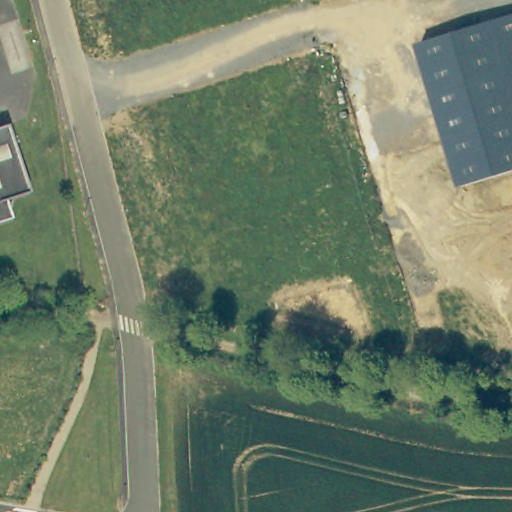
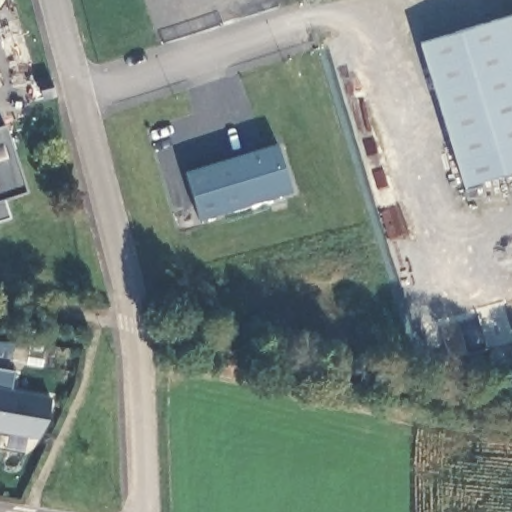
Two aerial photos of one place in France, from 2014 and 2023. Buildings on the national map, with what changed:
unchanged [(512,172),(465,187),(422,44),(512,15),(512,172)]
unchanged [(24,185),(0,194),(8,211),(0,214),(0,123),(24,185)]
new [(185,171),(277,142),(290,192),(199,219),(185,171)]
new [(0,389),(0,369),(13,371),(9,390),(0,389)]
new [(49,417),(40,438),(0,431),(0,389),(52,397),(49,417)]

